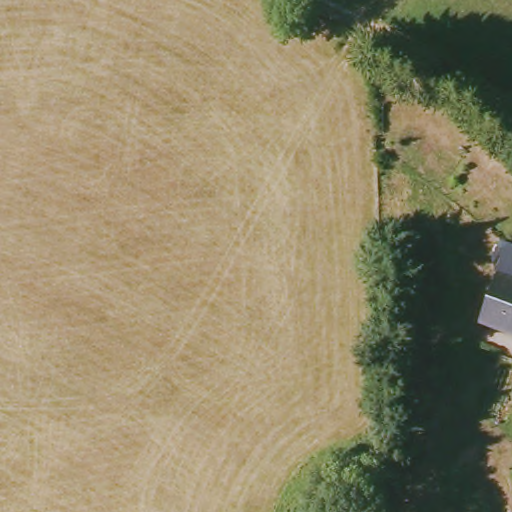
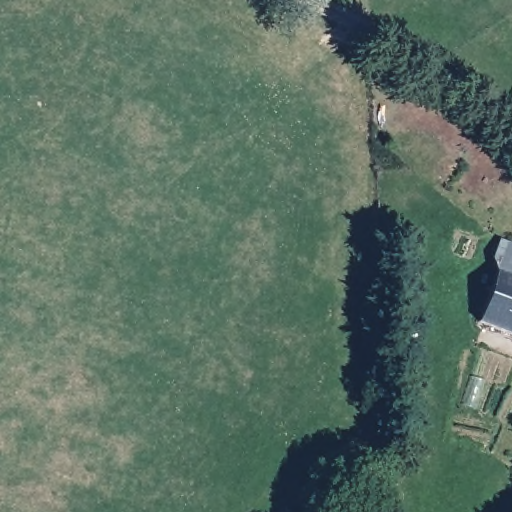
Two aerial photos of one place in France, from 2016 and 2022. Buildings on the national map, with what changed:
unchanged [(500,242),(512,246),(512,280),(496,275),(500,242)]
unchanged [(478,323),(491,289),(496,275),(512,280),(512,335),(478,323)]

